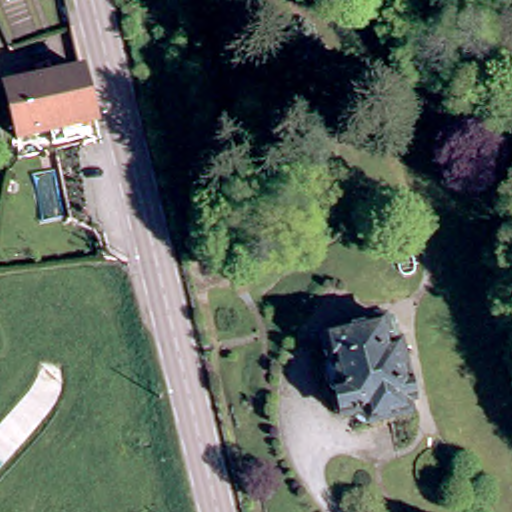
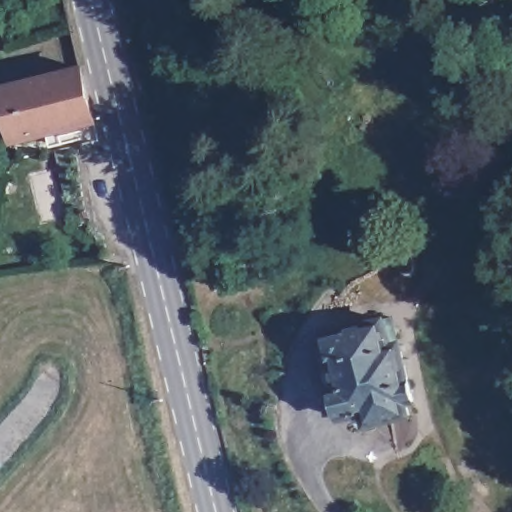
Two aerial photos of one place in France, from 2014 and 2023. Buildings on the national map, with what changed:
unchanged [(59,133),(46,136),(43,125),(8,133),(0,93),(0,78),(12,75),(73,61),(89,126),(59,133)]
unchanged [(192,244),(187,224),(202,220),(206,240),(192,244)]
unchanged [(399,401),(401,412),(360,422),(356,411),(333,416),(327,392),(324,393),(318,385),(316,380),(314,373),(315,366),(317,360),(320,359),(313,335),(375,319),(386,318),(391,343),(405,399),(399,401)]

